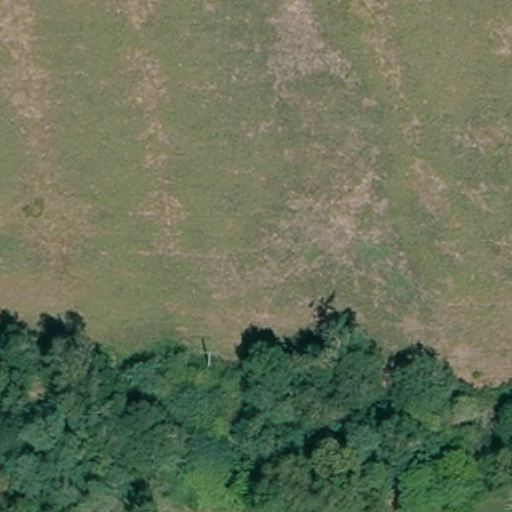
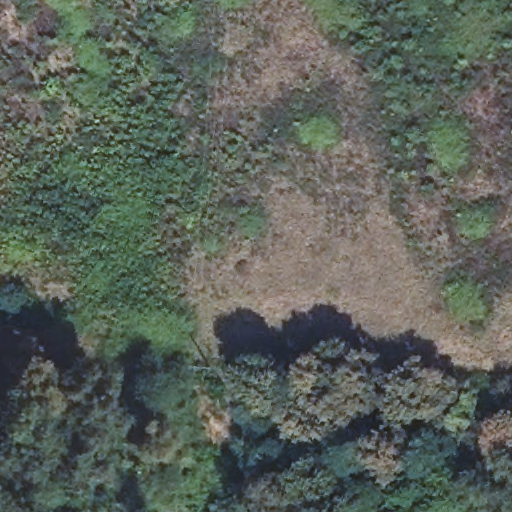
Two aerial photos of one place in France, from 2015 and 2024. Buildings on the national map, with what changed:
[]

